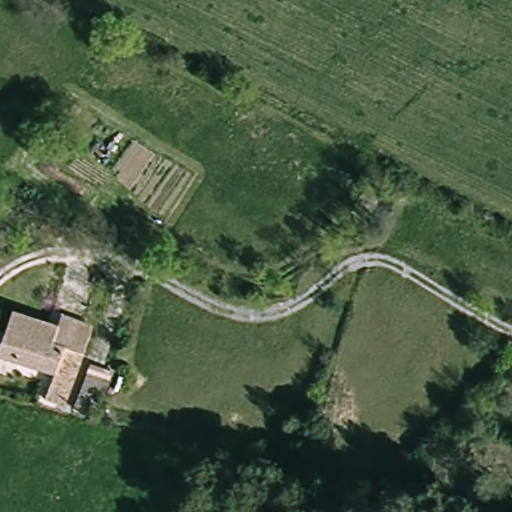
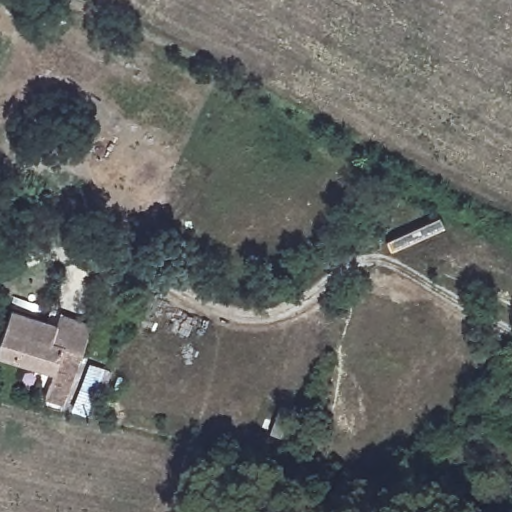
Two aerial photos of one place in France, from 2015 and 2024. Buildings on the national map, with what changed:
unchanged [(52,325),(47,337),(84,352),(64,407),(45,399),(55,373),(0,352),(0,338),(11,309),(52,325)]
unchanged [(89,362),(90,362),(113,371),(95,419),(89,417),(72,411),(89,362)]

